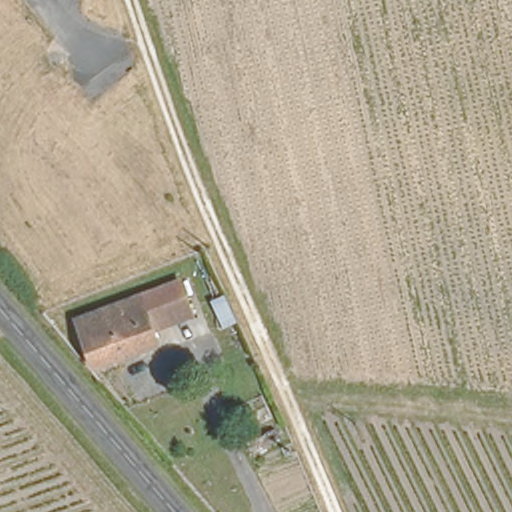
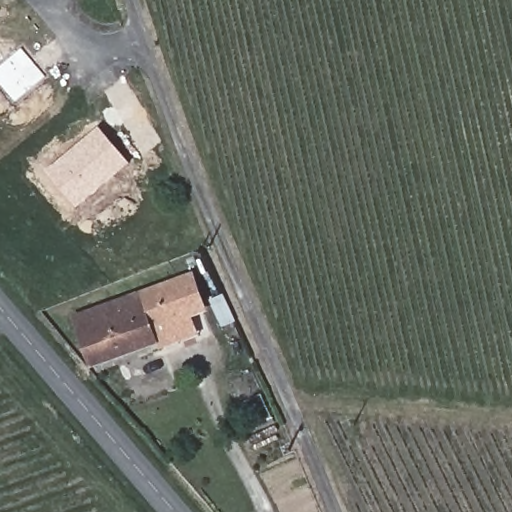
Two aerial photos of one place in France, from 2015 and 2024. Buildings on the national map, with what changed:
new [(46,76),(16,102),(0,84),(0,68),(22,49),(46,76)]
new [(100,127),(131,165),(78,210),(48,171),(100,127)]
unchanged [(184,278),(198,316),(156,332),(143,291),(184,278)]
unchanged [(156,332),(159,340),(94,363),(76,316),(143,291),(156,332)]
unchanged [(238,325),(223,330),(210,300),(225,296),(238,325)]

